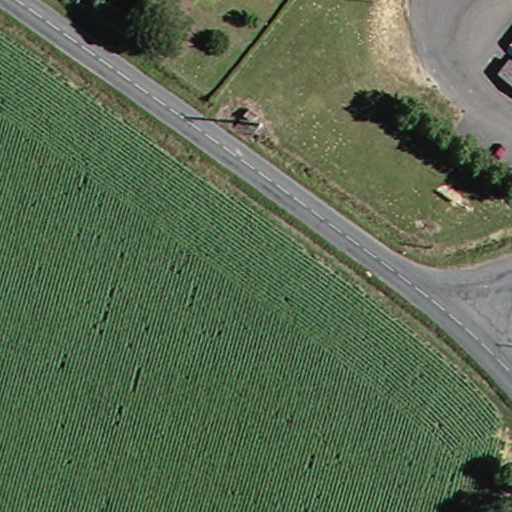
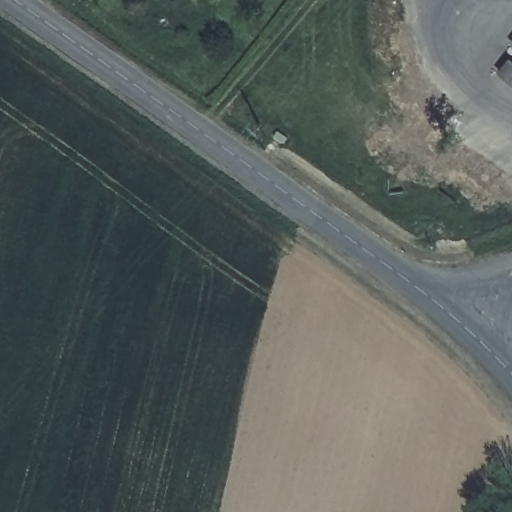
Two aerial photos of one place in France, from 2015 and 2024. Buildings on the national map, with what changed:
unchanged [(507,71),(512,66),(512,76),(507,71)]
unchanged [(260,114),(254,123),(247,119),(253,110),(260,114)]

